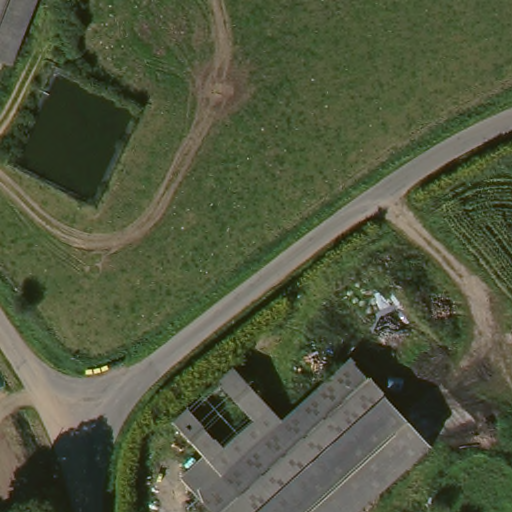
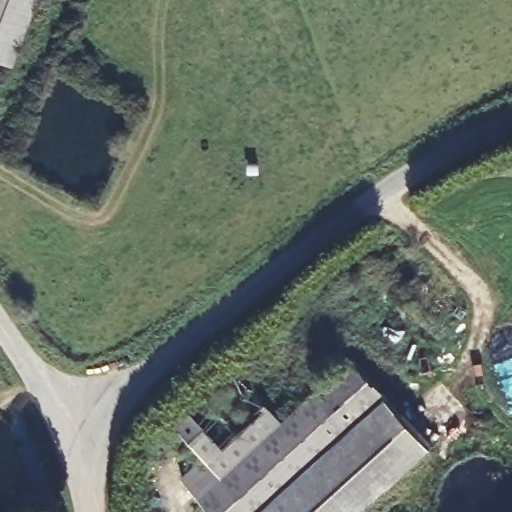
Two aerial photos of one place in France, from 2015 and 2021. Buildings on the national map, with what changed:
unchanged [(6,62),(0,60),(0,0),(30,0),(6,62)]
unchanged [(276,407),(287,421),(358,361),(434,452),(364,512),(213,512),(180,472),(204,452),(179,422),(243,367),(276,407)]

